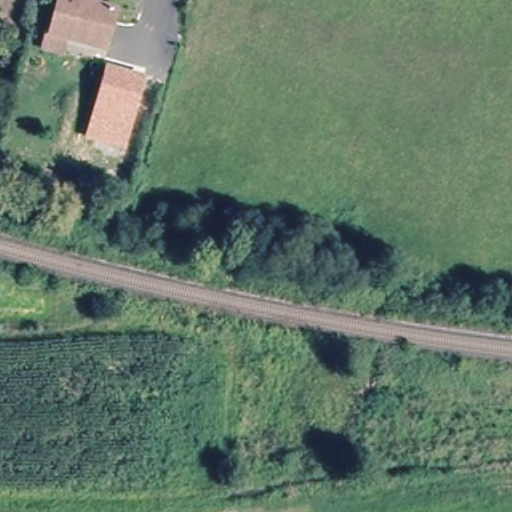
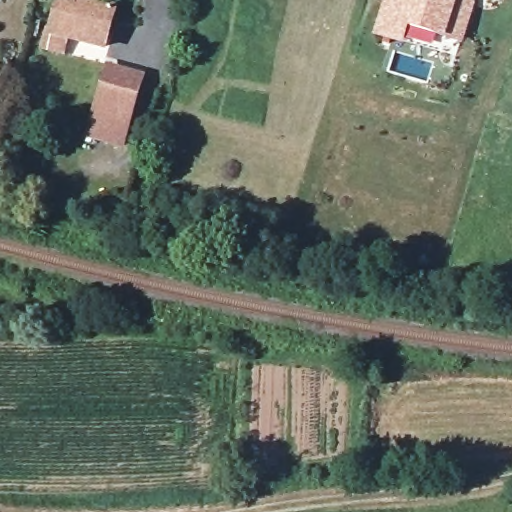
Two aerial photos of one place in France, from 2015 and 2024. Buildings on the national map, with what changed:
unchanged [(41,31),(47,32),(56,0),(86,0),(112,6),(101,46),(65,36),(62,50),(38,44),(41,31)]
new [(465,0),(476,4),(465,45),(409,27),(403,45),(374,36),(385,0),(465,0)]
unchanged [(145,75),(124,151),(84,140),(106,64),(145,75)]

